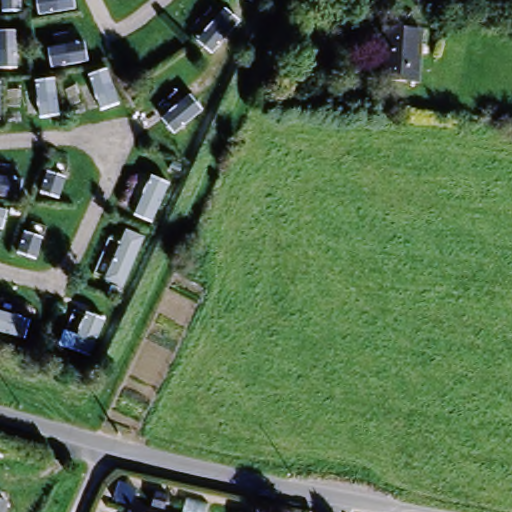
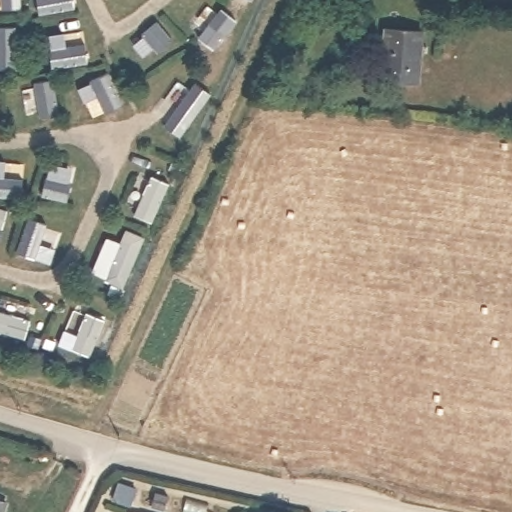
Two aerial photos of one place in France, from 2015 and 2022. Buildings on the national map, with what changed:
unchanged [(416,82),(381,79),(385,29),(422,31),(416,82)]
unchanged [(141,512),(131,512),(132,509),(141,512)]

